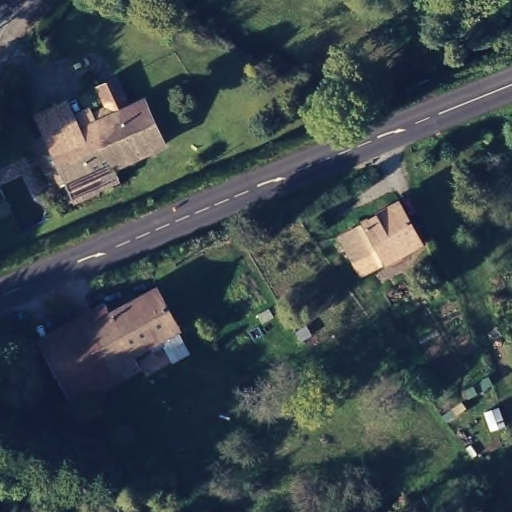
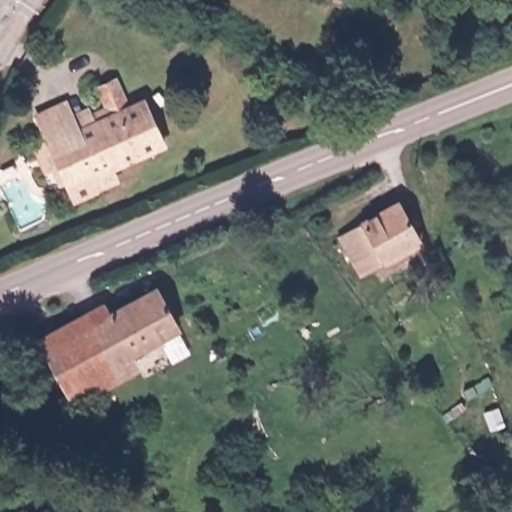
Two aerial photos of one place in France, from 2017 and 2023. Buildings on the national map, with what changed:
unchanged [(131,161),(132,176),(68,205),(34,133),(41,128),(32,109),(69,89),(85,120),(104,110),(97,82),(113,74),(122,97),(140,92),(170,144),(131,161)]
unchanged [(343,229),(404,203),(421,243),(363,268),(343,229)]
unchanged [(77,397),(49,345),(159,286),(180,321),(86,373),(91,389),(77,397)]

